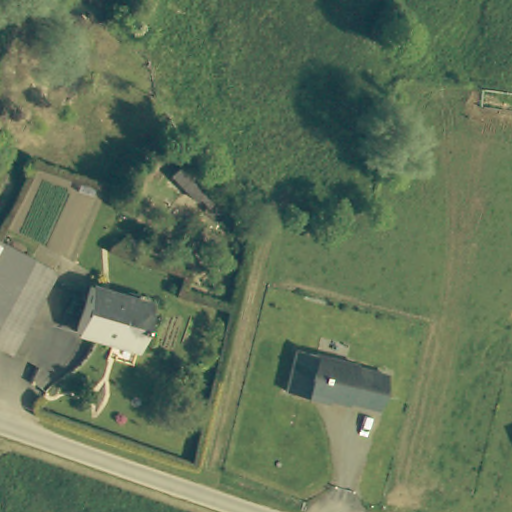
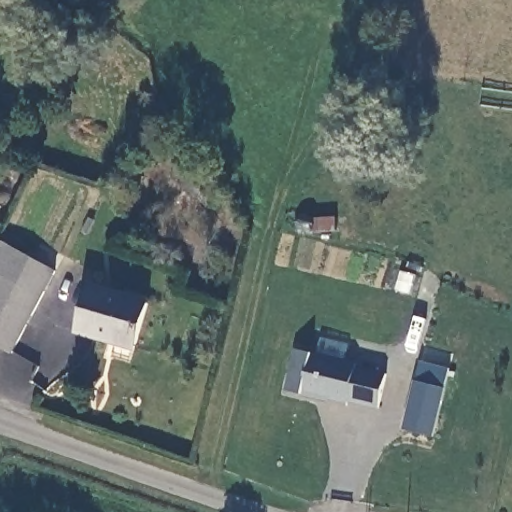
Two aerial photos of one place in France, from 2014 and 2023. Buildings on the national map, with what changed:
unchanged [(55,268),(12,351),(0,345),(0,238),(55,268)]
unchanged [(149,304),(135,350),(77,332),(90,286),(149,304)]
unchanged [(381,405),(323,395),(322,400),(291,393),(299,348),(359,360),(358,365),(388,372),(381,405)]
new [(433,436),(403,430),(413,370),(446,378),(433,436)]

